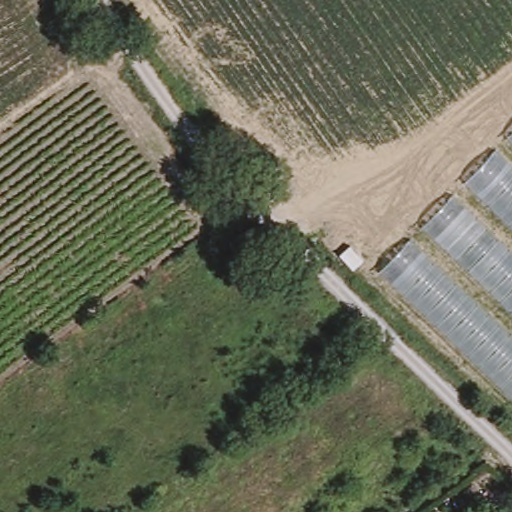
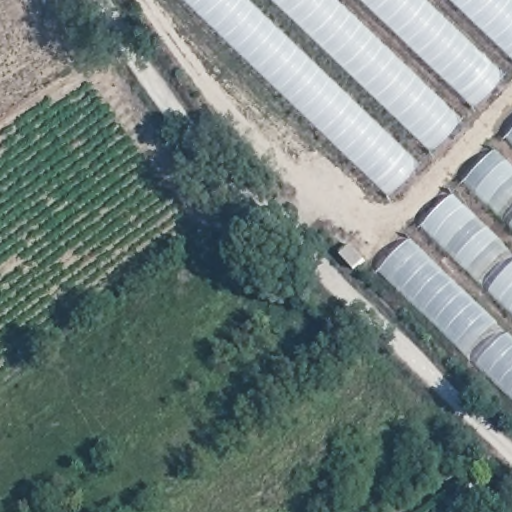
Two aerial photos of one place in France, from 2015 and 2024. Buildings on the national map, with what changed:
new [(384,199),(177,0),(512,0),(512,65),(384,199)]
unchanged [(512,134),(512,394),(385,272),(452,197),(512,134)]

